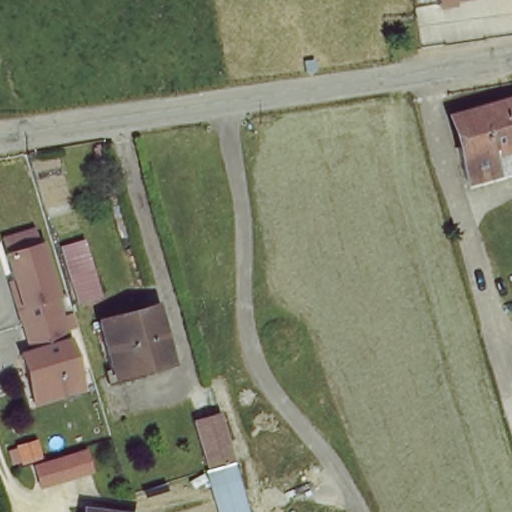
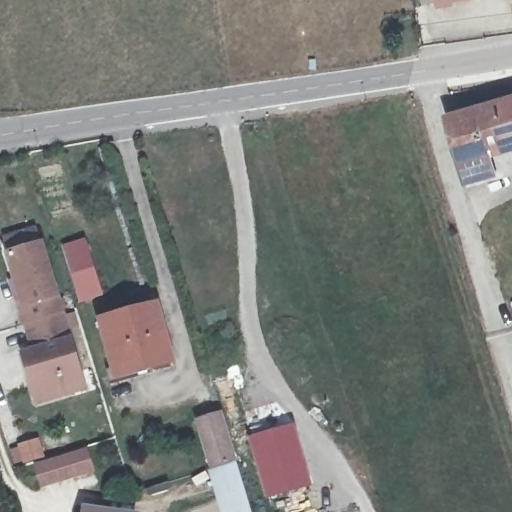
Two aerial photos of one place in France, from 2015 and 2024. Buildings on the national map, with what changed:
unchanged [(512,143),(507,145),(512,165),(512,167),(474,179),(466,181),(456,145),(461,144),(452,112),(512,96),(512,143)]
unchanged [(24,322),(0,239),(0,237),(31,226),(63,312),(24,322)]
unchanged [(66,247),(84,243),(100,291),(81,300),(66,247)]
unchanged [(160,301),(166,323),(174,355),(117,372),(101,316),(160,301)]
unchanged [(63,312),(89,390),(34,406),(16,353),(31,348),(24,322),(63,312)]
unchanged [(194,422),(219,414),(233,461),(207,468),(194,422)]
new [(295,422),(313,486),(265,499),(247,436),(295,422)]
unchanged [(42,437),(49,462),(93,450),(101,476),(39,490),(33,463),(22,467),(15,445),(42,437)]
unchanged [(207,468),(233,461),(249,512),(221,512),(207,468)]

